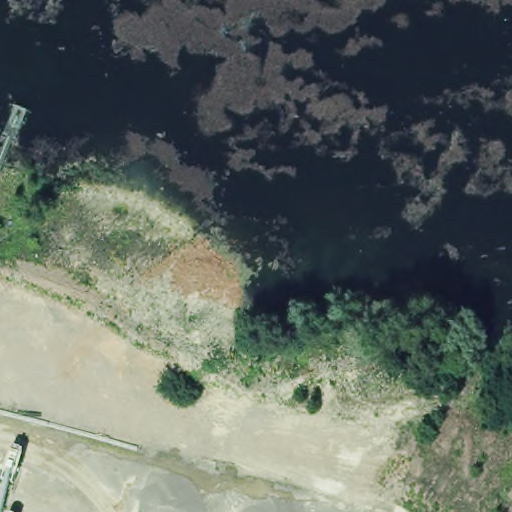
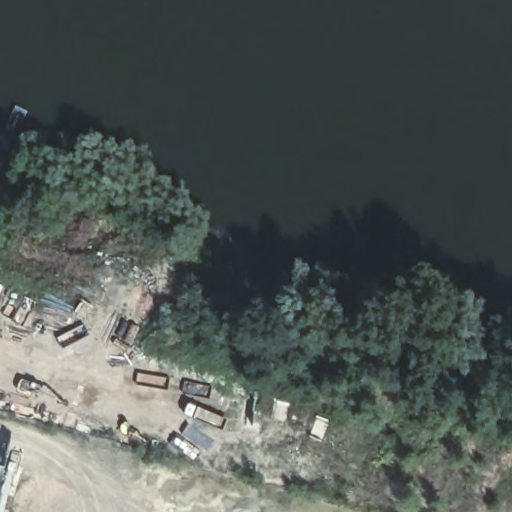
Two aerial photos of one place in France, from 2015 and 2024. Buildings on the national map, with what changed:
[]

